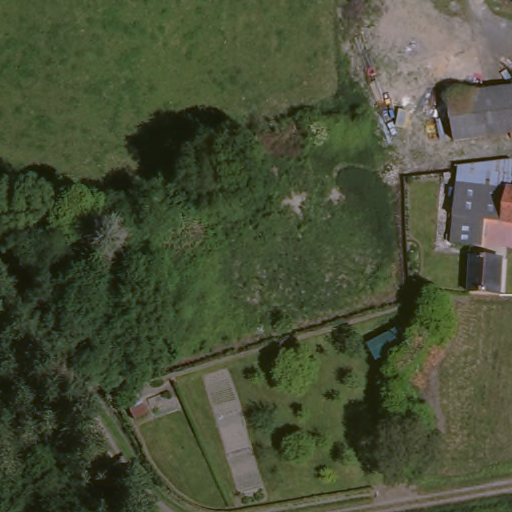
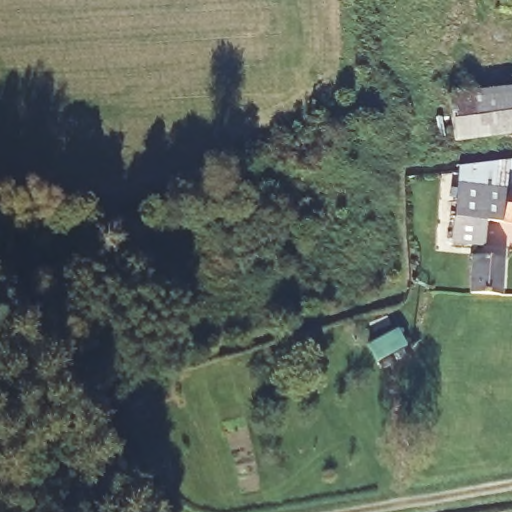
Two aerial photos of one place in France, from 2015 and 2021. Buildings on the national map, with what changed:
unchanged [(457,141),(452,113),(450,101),(512,88),(512,131),(457,141)]
unchanged [(472,249),(460,248),(465,184),(512,187),(512,225),(497,224),(497,251),(472,249)]
unchanged [(506,296),(476,293),(478,257),(509,260),(506,296)]

